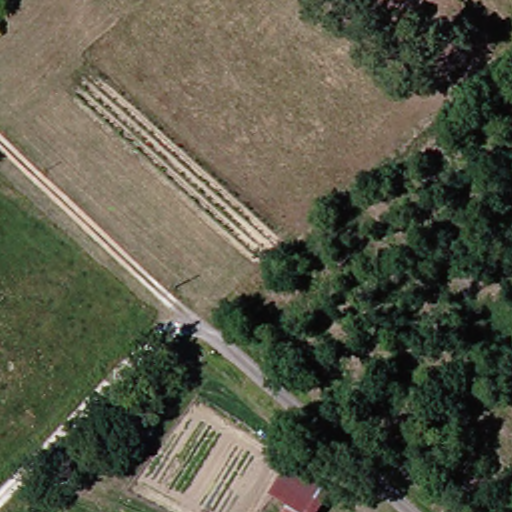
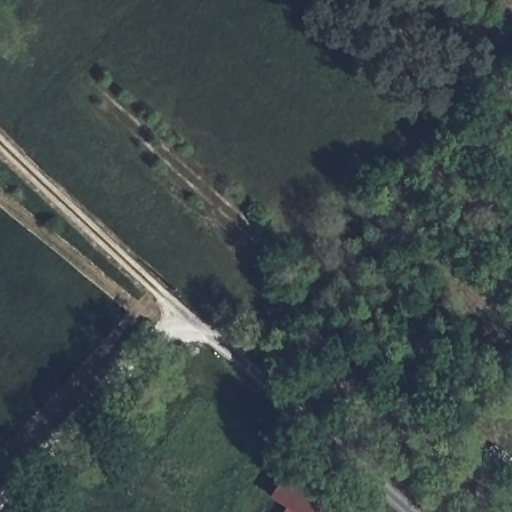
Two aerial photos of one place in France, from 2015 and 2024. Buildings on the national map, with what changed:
unchanged [(326,512),(283,512),(287,499),(274,491),(290,468),(337,496),(326,512)]

